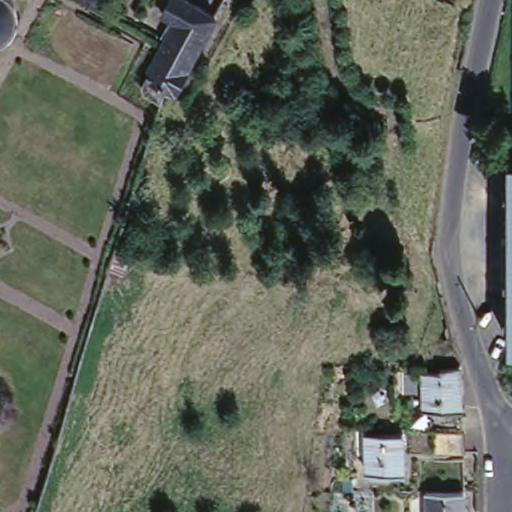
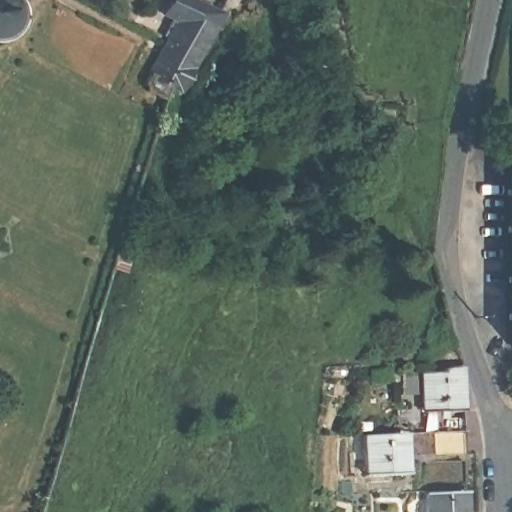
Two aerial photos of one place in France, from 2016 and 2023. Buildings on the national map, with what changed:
unchanged [(1,36),(0,37),(0,0),(10,0),(12,4),(14,9),(14,14),(14,18),(12,23),(10,27),(8,31),(5,34),(1,36)]
unchanged [(181,26),(175,24),(180,15),(172,11),(178,0),(204,0),(226,12),(186,86),(180,82),(172,97),(155,86),(151,80),(181,26)]
unchanged [(428,413),(427,372),(444,372),(443,368),(455,367),(462,366),(464,366),(465,395),(465,411),(428,413)]
unchanged [(406,378),(420,377),(420,393),(406,394),(406,378)]
unchanged [(439,454),(439,432),(447,431),(446,417),(468,417),(469,431),(470,452),(439,454)]
unchanged [(360,449),(370,450),(370,436),(407,435),(408,473),(371,474),(370,471),(361,471),(360,449)]
unchanged [(465,492),(465,512),(428,512),(427,493),(465,492)]

